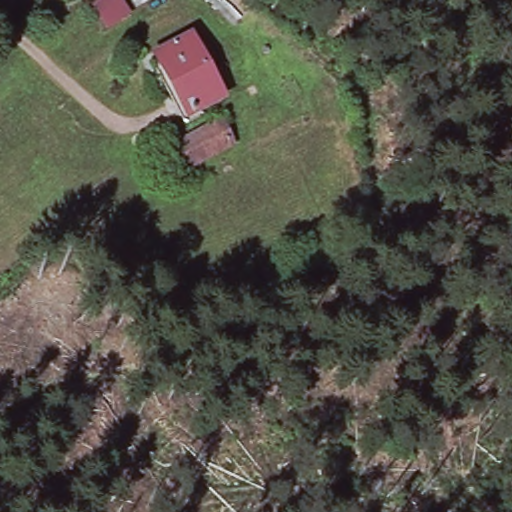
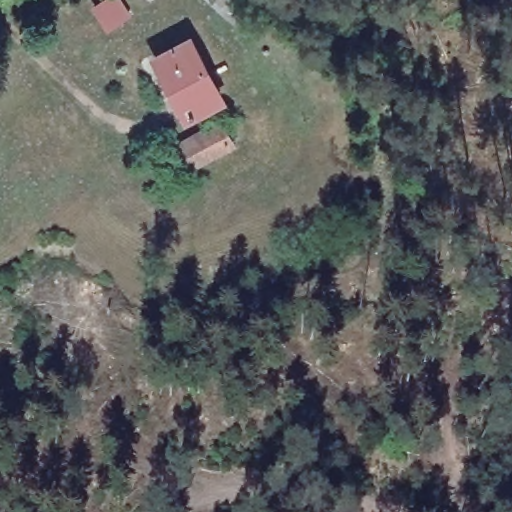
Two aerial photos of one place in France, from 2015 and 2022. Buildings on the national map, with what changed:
unchanged [(191,31),(227,100),(188,125),(152,54),(191,31)]
unchanged [(222,117),(239,152),(192,178),(172,142),(222,117)]

